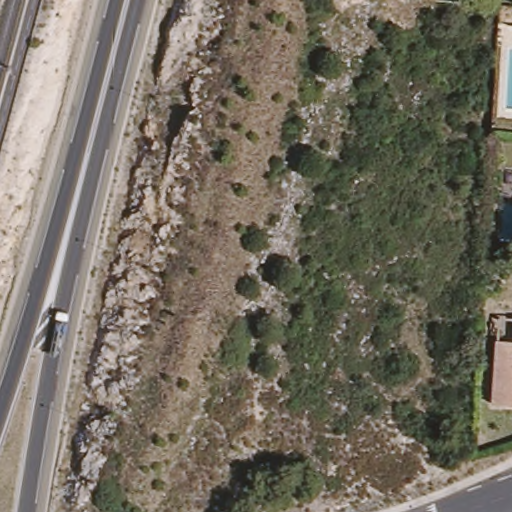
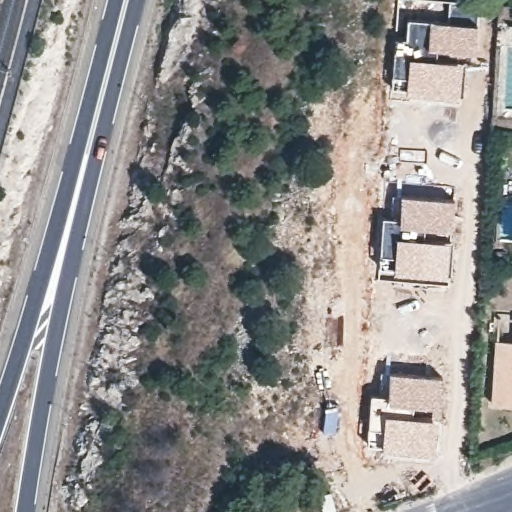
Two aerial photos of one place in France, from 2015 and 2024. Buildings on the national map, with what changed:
new [(405,40),(406,19),(426,20),(448,21),(449,5),(475,7),(474,22),(477,22),(475,58),(466,58),(462,64),(458,100),(404,95),(404,90),(390,89),(395,39),(405,40)]
new [(457,200),(453,230),(425,228),(425,237),(449,239),(449,245),(453,245),(451,276),(447,277),(395,273),(395,267),(380,267),(380,254),(393,254),(395,232),(397,232),(398,218),(401,195),(457,200)]
new [(380,217),(398,218),(397,232),(395,232),(393,254),(378,254),(380,217)]
unchanged [(512,337),(512,400),(493,399),(498,336),(512,337)]
new [(386,395),(388,371),(444,376),(439,412),(423,408),(385,405),(386,395)]
new [(368,445),(370,394),(386,396),(385,405),(423,408),(439,412),(435,455),(380,450),(380,445),(368,445)]

